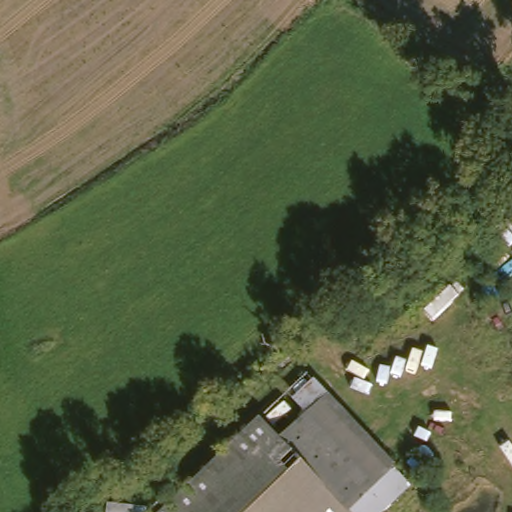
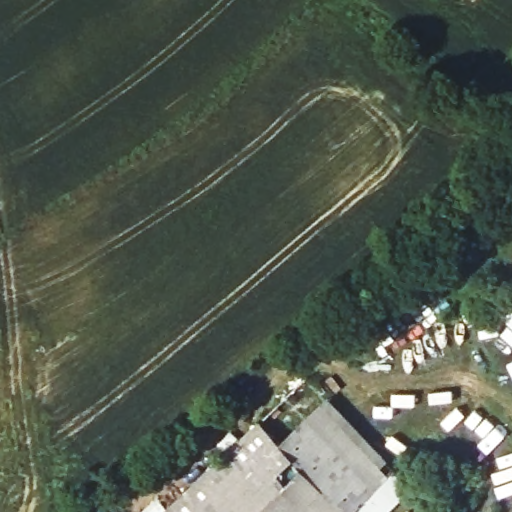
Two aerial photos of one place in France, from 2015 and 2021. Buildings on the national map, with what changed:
unchanged [(259,420),(280,443),(331,394),(395,468),(411,453),(426,470),(383,512),(161,512),(259,420)]

